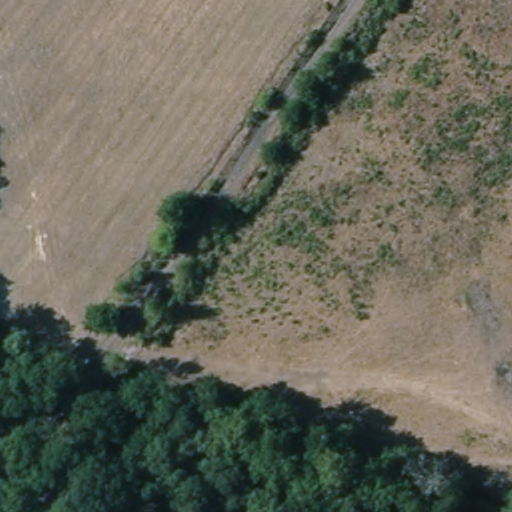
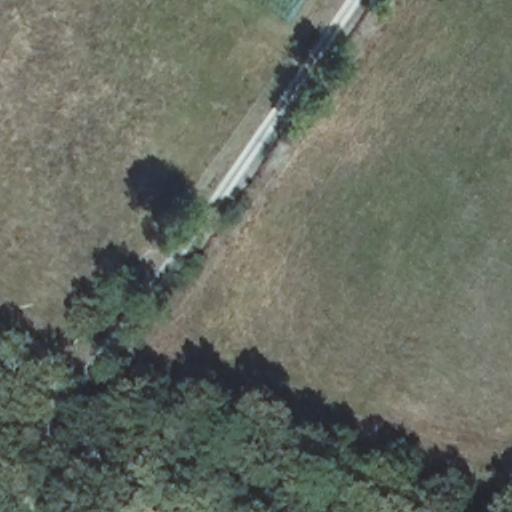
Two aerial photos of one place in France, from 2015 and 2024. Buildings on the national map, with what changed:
unchanged [(155,509),(160,512),(153,512),(155,509)]

